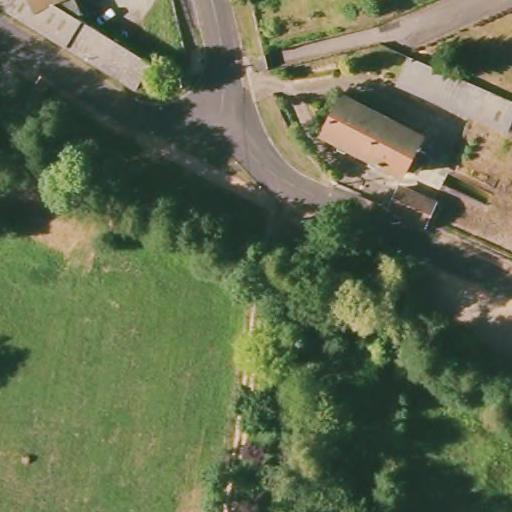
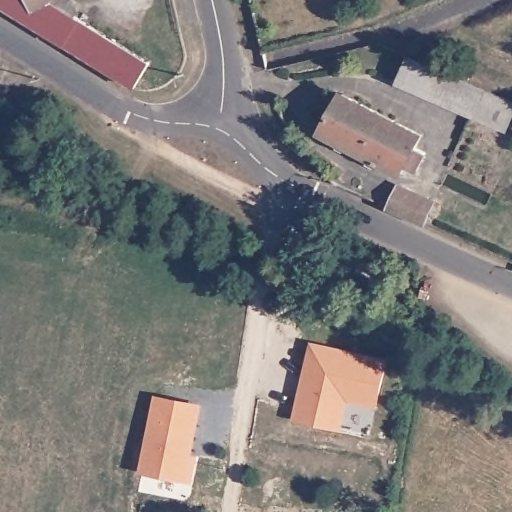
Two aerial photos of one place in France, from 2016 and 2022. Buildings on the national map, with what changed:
unchanged [(0,5),(0,0),(68,0),(75,15),(152,65),(137,89),(11,11),(0,5)]
unchanged [(405,58),(512,104),(512,118),(506,133),(394,85),(405,58)]
unchanged [(425,135),(405,176),(324,134),(343,94),(425,135)]
unchanged [(392,208),(402,188),(437,202),(428,224),(392,208)]
unchanged [(318,285),(311,303),(288,294),(294,276),(318,285)]
new [(297,418),(315,346),(386,362),(377,404),(347,398),(340,428),(297,418)]
new [(144,471),(156,398),(200,406),(188,479),(144,471)]

